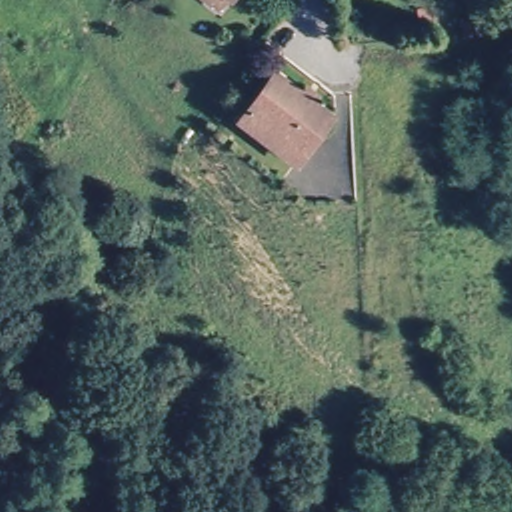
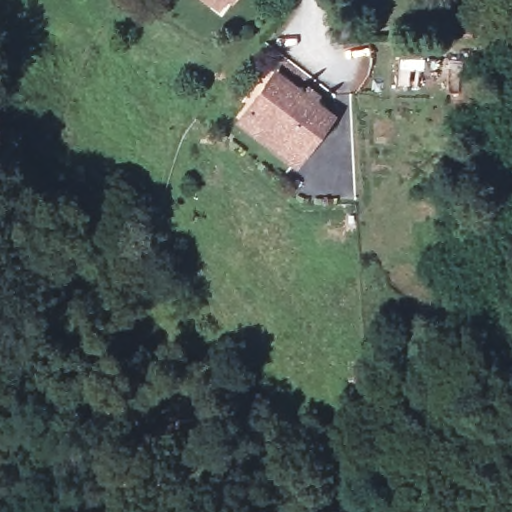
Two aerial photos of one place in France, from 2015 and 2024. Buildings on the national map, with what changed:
unchanged [(210,0),(214,0),(213,2),(210,0)]
unchanged [(242,117),(277,72),(333,112),(299,159),(242,117)]

